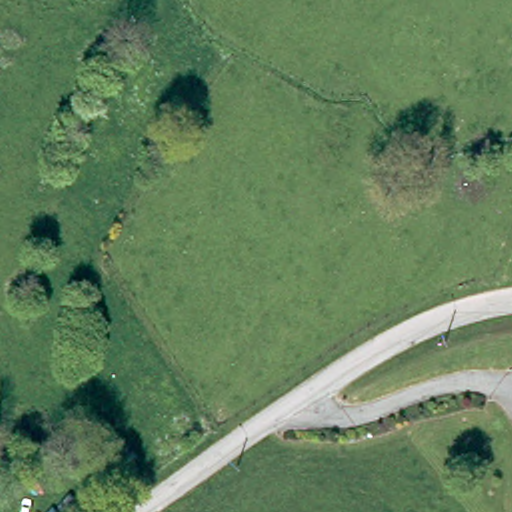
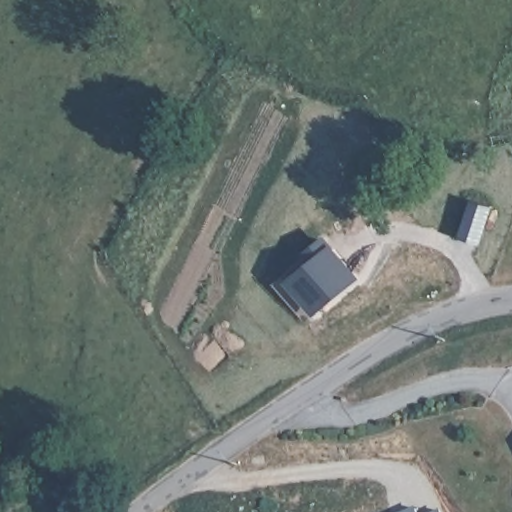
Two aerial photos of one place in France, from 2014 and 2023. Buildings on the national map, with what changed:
new [(310,254),(327,241),(355,276),(315,310),(292,281),(317,262),(310,254)]
new [(401,512),(415,506),(418,512),(401,512)]
new [(441,512),(433,512),(440,509),(441,512)]

